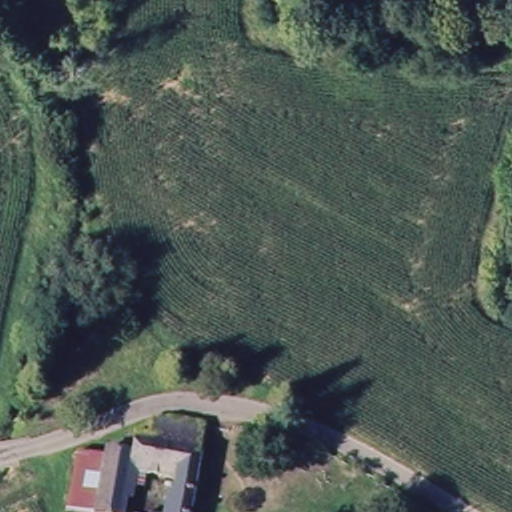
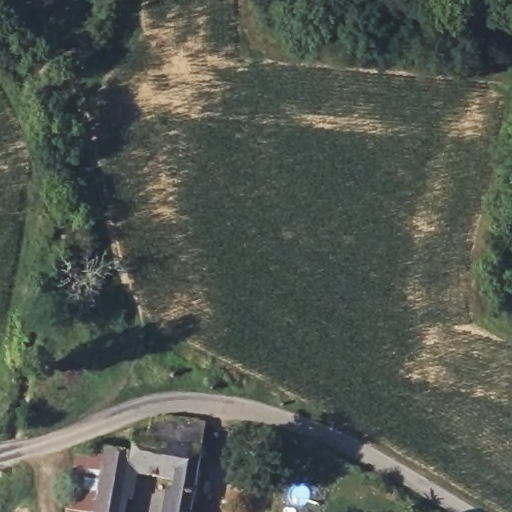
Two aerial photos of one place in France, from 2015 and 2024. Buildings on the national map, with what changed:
unchanged [(126,476),(121,512),(92,512),(97,455),(122,456),(124,438),(142,439),(143,433),(167,423),(198,429),(192,512),(171,512),(174,483),(126,476)]
unchanged [(92,512),(63,512),(70,454),(97,455),(92,512)]

